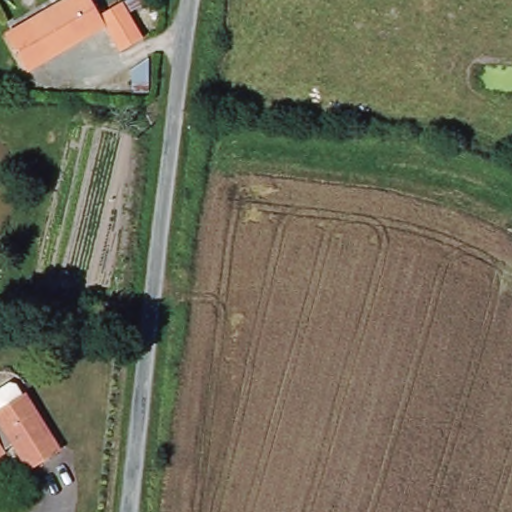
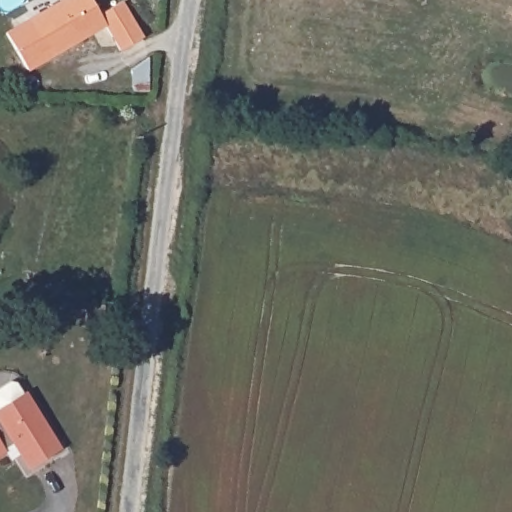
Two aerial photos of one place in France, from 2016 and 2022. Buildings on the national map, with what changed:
unchanged [(106,29),(27,74),(4,36),(66,0),(91,0),(99,13),(122,0),(147,0),(149,4),(133,15),(145,41),(122,53),(106,29)]
unchanged [(19,396),(23,394),(58,452),(29,469),(15,446),(0,455),(0,389),(12,382),(19,396)]

